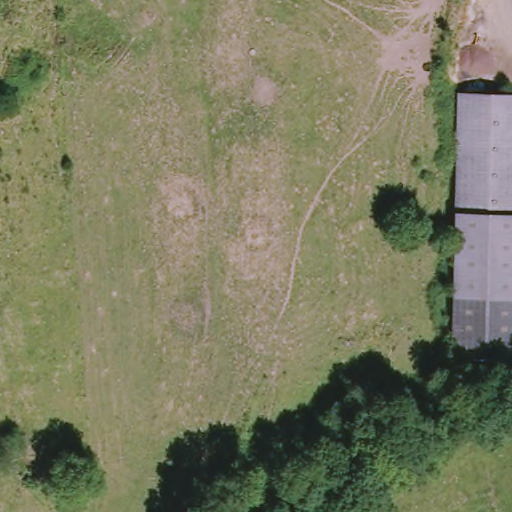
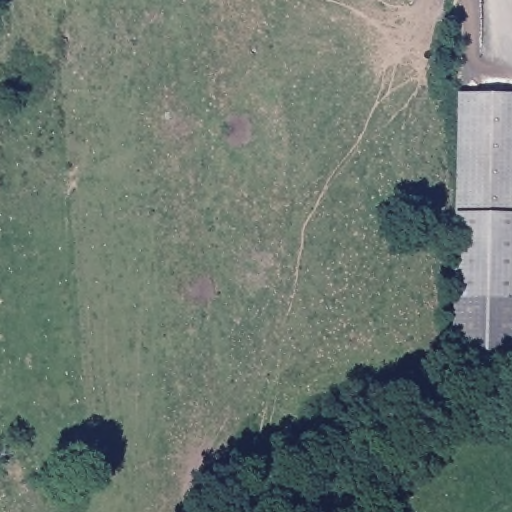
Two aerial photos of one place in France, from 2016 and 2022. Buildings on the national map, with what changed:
unchanged [(512,93),(512,356),(453,354),(454,212),(457,91),(512,93)]

